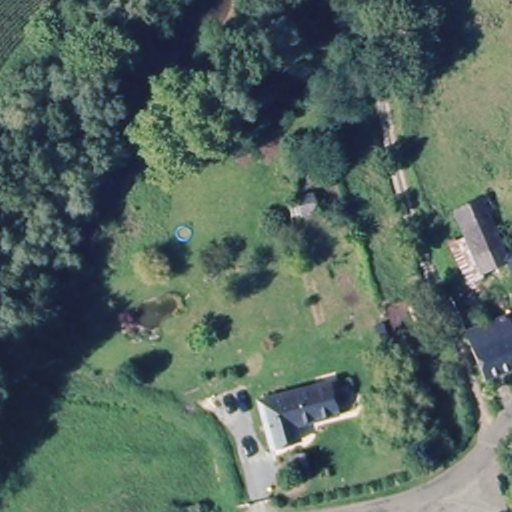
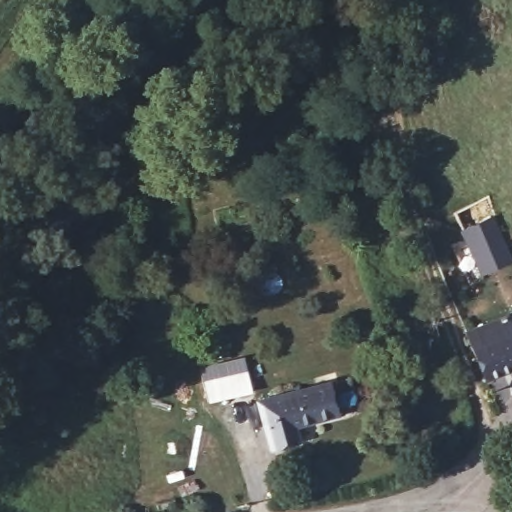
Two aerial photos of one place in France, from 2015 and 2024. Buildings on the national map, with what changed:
unchanged [(464,292),(445,240),(458,236),(449,210),(484,194),(495,226),(489,228),(500,261),(471,272),(476,286),(464,292)]
unchanged [(512,242),(512,274),(503,245),(512,242)]
unchanged [(467,335),(510,318),(512,322),(512,374),(487,386),(467,335)]
new [(207,403),(201,381),(197,365),(243,356),(247,371),(252,392),(207,403)]
unchanged [(341,374),(350,408),(306,420),(310,436),(295,439),(282,442),(271,394),(288,389),(341,374)]
unchanged [(292,460),(312,455),(316,480),(295,485),(292,460)]

